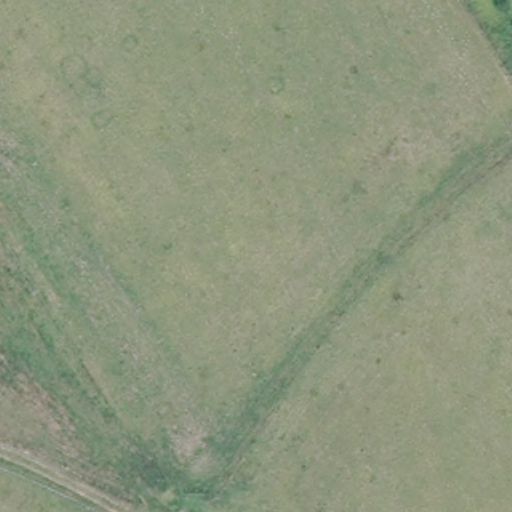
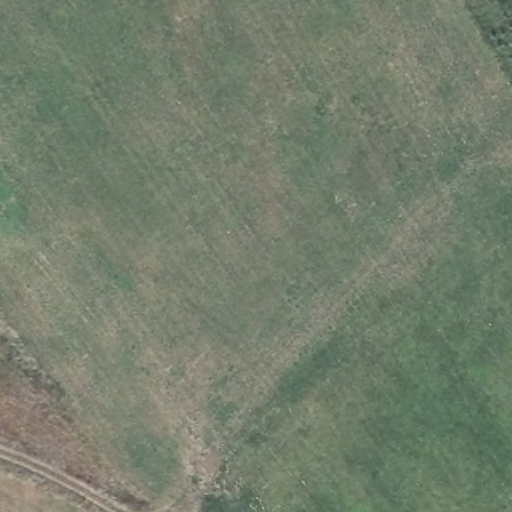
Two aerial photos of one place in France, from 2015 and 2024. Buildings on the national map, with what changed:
[]

